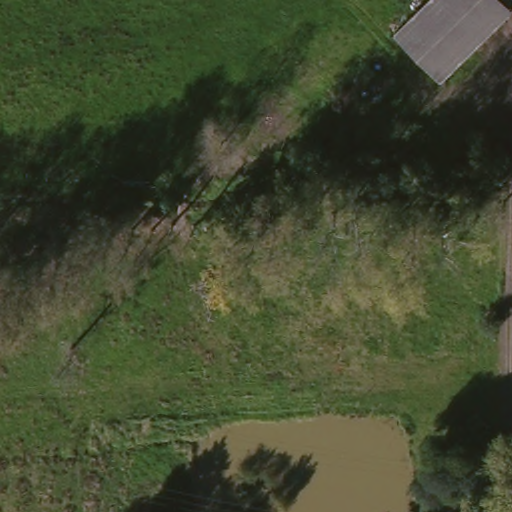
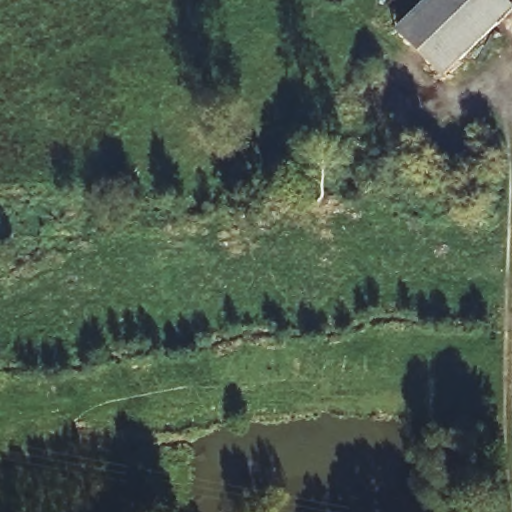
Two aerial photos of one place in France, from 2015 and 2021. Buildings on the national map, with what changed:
unchanged [(434,86),(390,38),(427,0),(512,0),(512,14),(510,12),(434,86)]

